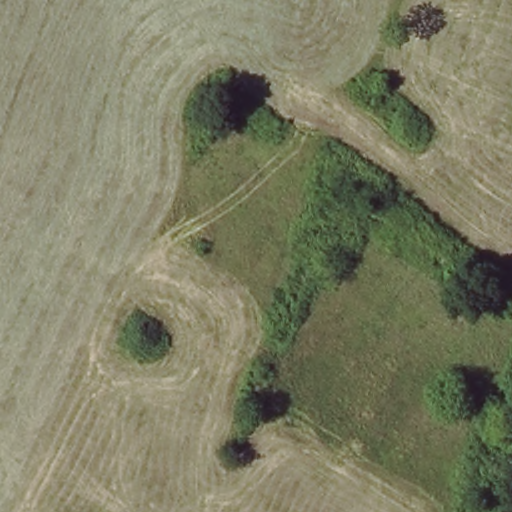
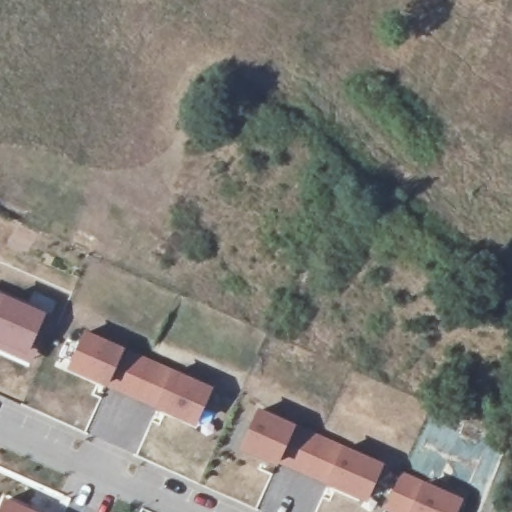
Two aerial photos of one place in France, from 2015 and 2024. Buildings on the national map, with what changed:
new [(39,360),(0,343),(0,286),(60,314),(39,360)]
new [(218,387),(203,421),(74,361),(92,326),(218,387)]
new [(390,464),(376,501),(251,444),(266,406),(390,464)]
new [(415,478),(424,481),(462,499),(457,512),(390,512),(385,510),(394,492),(415,478)]
new [(6,512),(14,495),(49,512),(6,512)]

